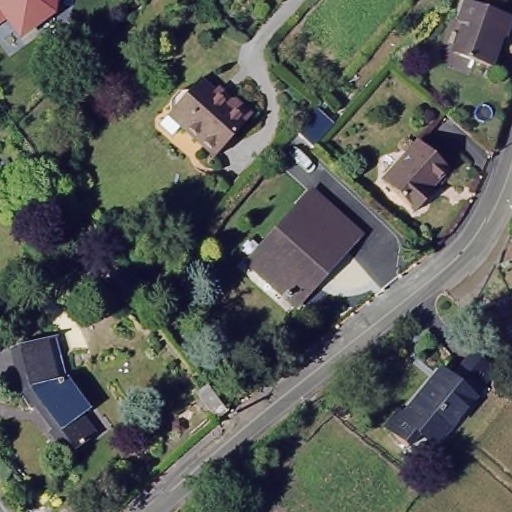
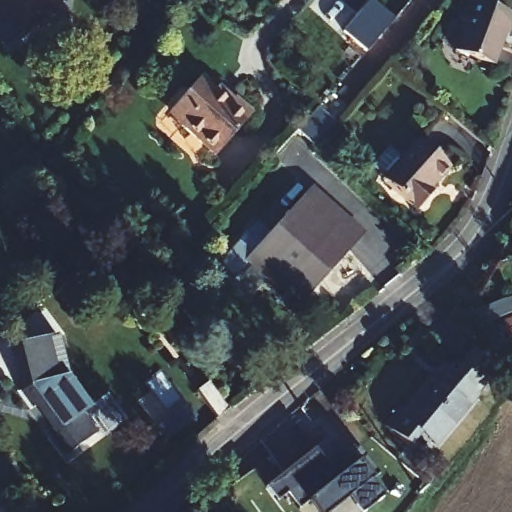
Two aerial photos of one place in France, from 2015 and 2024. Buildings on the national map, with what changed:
unchanged [(15,35),(4,18),(0,20),(0,0),(53,0),(51,11),(15,35)]
new [(373,0),(395,17),(367,51),(343,30),(370,0),(373,0)]
unchanged [(455,50),(466,25),(461,19),(470,1),(512,21),(490,65),(455,50)]
unchanged [(235,95),(252,113),(215,155),(167,105),(198,74),(228,102),(235,95)]
unchanged [(453,167),(416,208),(385,177),(421,137),(453,167)]
unchanged [(250,258),(312,188),(360,230),(298,302),(250,258)]
unchanged [(17,348),(61,338),(74,380),(97,405),(87,413),(100,432),(74,453),(27,388),(17,348)]
unchanged [(390,425),(401,412),(406,417),(445,368),(475,395),(437,443),(424,432),(413,445),(390,425)]
unchanged [(230,410),(218,421),(197,392),(210,382),(230,410)]
new [(337,478),(358,462),(363,458),(377,476),(369,482),(380,497),(363,512),(315,512),(307,501),(298,508),(285,493),(276,500),(266,488),(316,450),(337,478)]

